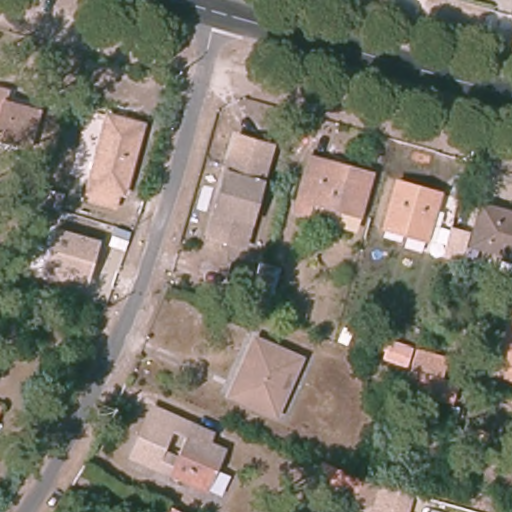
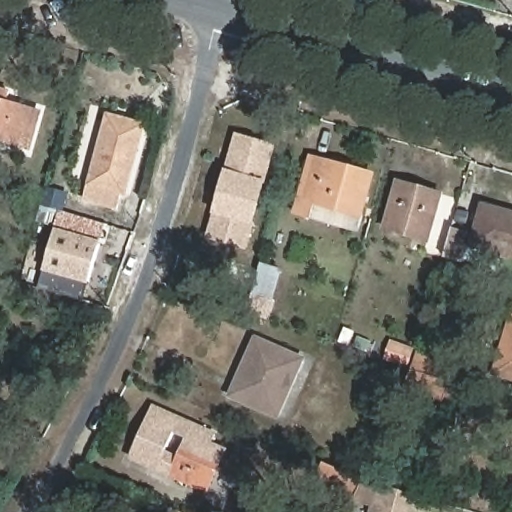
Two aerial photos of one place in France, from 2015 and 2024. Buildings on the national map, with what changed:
unchanged [(5,88),(1,100),(35,110),(25,145),(0,138),(0,87),(5,88)]
unchanged [(140,123),(121,191),(116,189),(112,206),(82,197),(105,114),(140,123)]
unchanged [(217,215),(235,152),(238,140),(256,145),(273,149),(245,250),(230,245),(210,240),(217,215)]
unchanged [(296,195),(307,155),(370,173),(356,226),(311,213),(293,208),(296,195)]
unchanged [(423,239),(382,227),(396,180),(437,193),(423,239)]
unchanged [(483,205),(512,213),(512,256),(471,243),(483,205)]
unchanged [(86,284),(44,271),(57,228),(100,241),(86,284)]
unchanged [(470,234),(462,260),(445,255),(452,228),(470,234)]
unchanged [(267,266),(287,272),(278,301),(259,295),(267,266)]
unchanged [(512,310),(512,382),(491,376),(512,310)]
unchanged [(306,358),(275,419),(228,396),(254,336),(306,358)]
unchanged [(387,360),(393,345),(415,353),(410,368),(387,360)]
unchanged [(420,351),(448,361),(442,381),(458,385),(453,406),(405,390),(413,372),(420,351)]
unchanged [(154,406),(213,432),(209,441),(226,450),(208,491),(130,459),(154,406)]
unchanged [(360,477),(352,495),(314,477),(321,461),(360,477)]
unchanged [(408,496),(403,512),(372,512),(380,488),(408,496)]
unchanged [(170,512),(170,511),(171,512),(170,512)]

